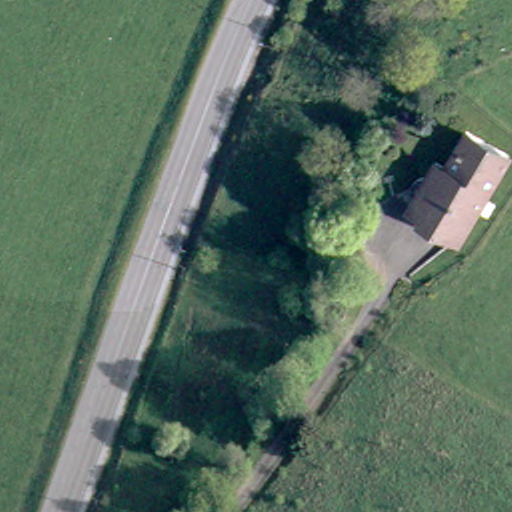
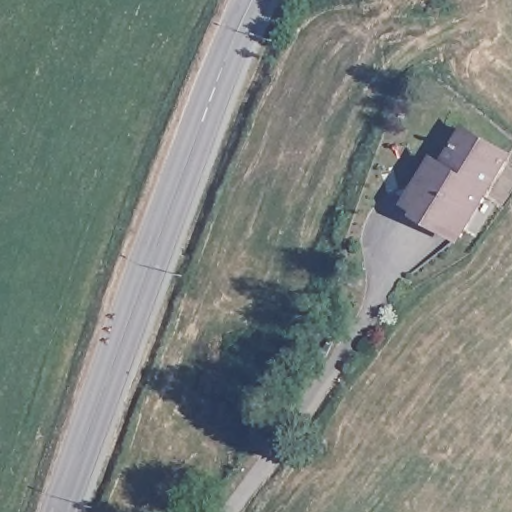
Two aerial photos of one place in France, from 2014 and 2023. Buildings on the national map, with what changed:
unchanged [(503,170),(441,233),(408,203),(470,139),(503,170)]

